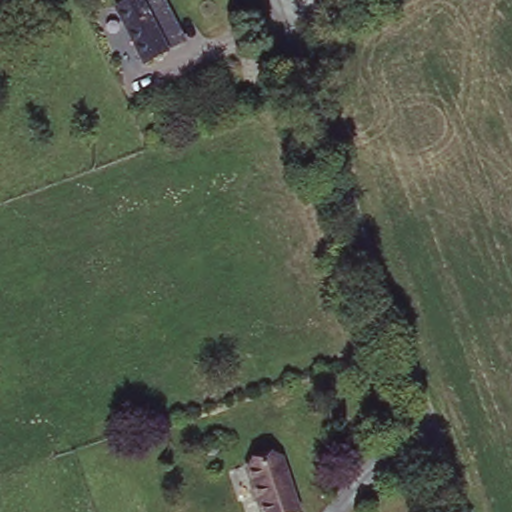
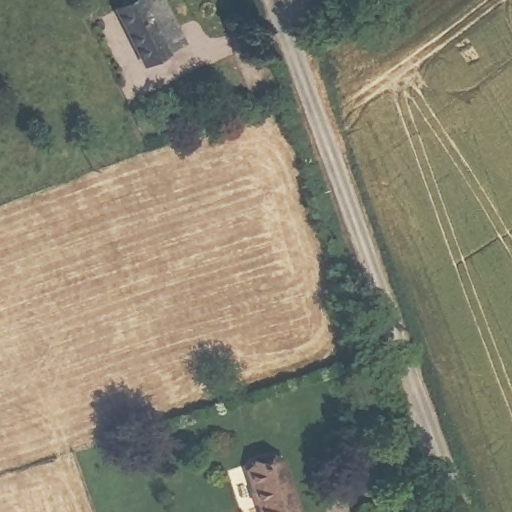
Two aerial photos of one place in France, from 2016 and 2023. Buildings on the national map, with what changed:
unchanged [(127,0),(172,0),(187,34),(145,53),(120,4),(127,0)]
unchanged [(300,512),(298,512),(262,512),(248,463),(283,453),(300,512)]

